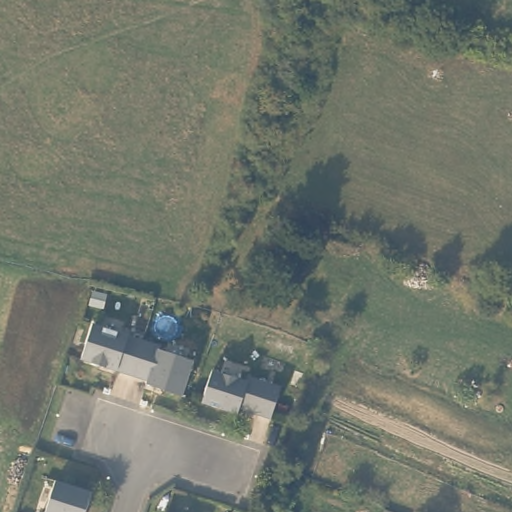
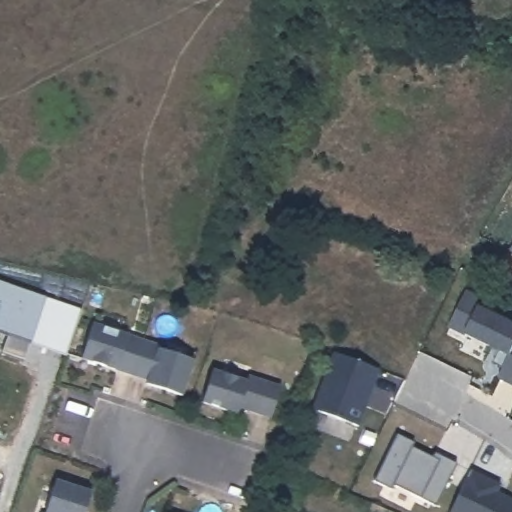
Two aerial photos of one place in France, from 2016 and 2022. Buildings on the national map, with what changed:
new [(512,243),(512,250),(509,248),(512,243)]
new [(81,308),(66,356),(30,343),(25,359),(1,353),(2,350),(0,349),(0,280),(45,296),(81,308)]
new [(448,326),(464,293),(480,302),(512,318),(512,383),(497,376),(503,365),(493,361),(500,347),(465,331),(465,334),(448,326)]
unchanged [(94,324),(145,339),(133,374),(82,359),(94,324)]
unchanged [(145,339),(161,344),(160,349),(194,361),(183,396),(147,384),(149,379),(133,374),(145,339)]
new [(358,426),(310,409),(332,352),(380,369),(358,426)]
unchanged [(213,371),(247,382),(249,377),(281,387),(271,418),(240,407),(239,413),(204,402),(213,371)]
new [(435,504),(393,484),(391,488),(374,480),(396,434),(413,441),(410,447),(432,457),(435,453),(455,462),(435,504)]
new [(468,477),(471,468),(501,484),(497,491),(512,499),(512,512),(449,512),(466,476),(468,477)]
unchanged [(57,481),(92,492),(86,512),(47,512),(57,481)]
unchanged [(383,508),(393,512),(382,512),(383,508)]

